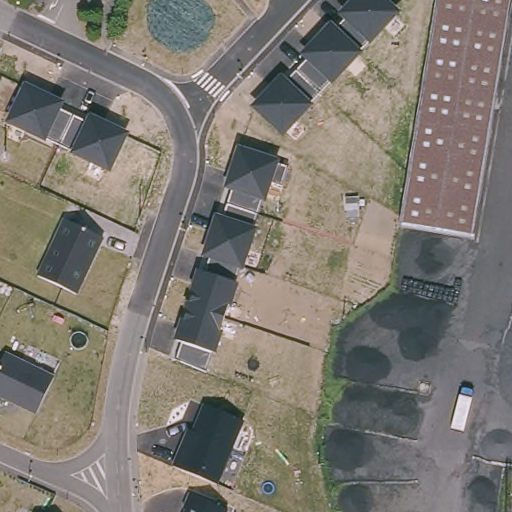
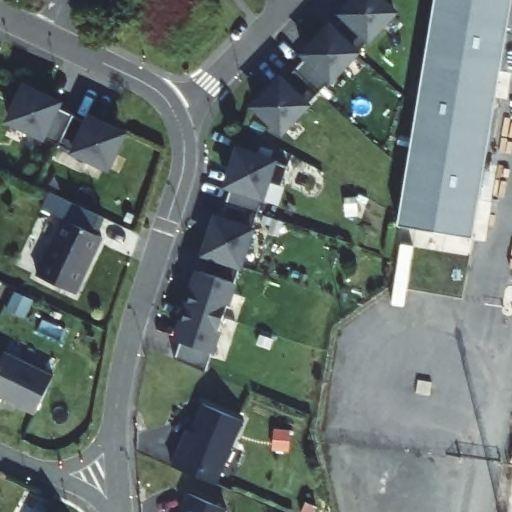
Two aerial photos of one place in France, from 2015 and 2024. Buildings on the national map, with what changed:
unchanged [(377,0),(395,16),(281,135),(247,106),(346,0),(377,0)]
unchanged [(398,220),(435,0),(511,0),(472,232),(398,220)]
unchanged [(2,125),(24,81),(125,129),(103,173),(2,125)]
unchanged [(203,353),(199,364),(179,357),(183,346),(171,342),(215,212),(225,215),(232,190),(221,187),(235,144),(276,156),(273,165),(285,169),(280,184),(270,179),(263,200),(253,197),(245,221),(256,225),(213,357),(203,353)]
unchanged [(33,277),(62,215),(105,235),(75,295),(33,277)]
unchanged [(0,353),(1,350),(52,369),(35,413),(0,399),(0,353)]
unchanged [(168,464),(195,402),(240,422),(215,484),(168,464)]
unchanged [(185,497),(223,512),(178,512),(185,497)]
unchanged [(34,511),(36,512),(34,512),(34,511)]

